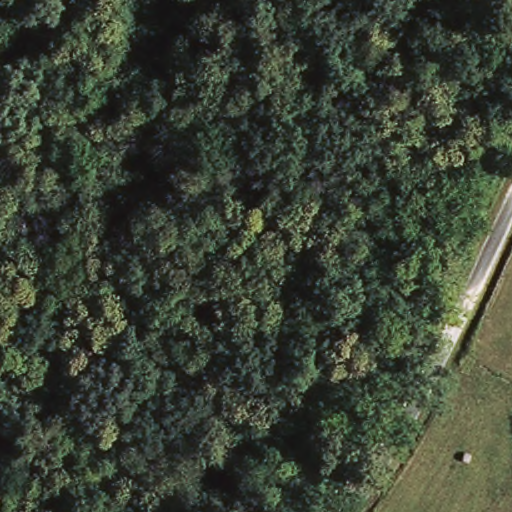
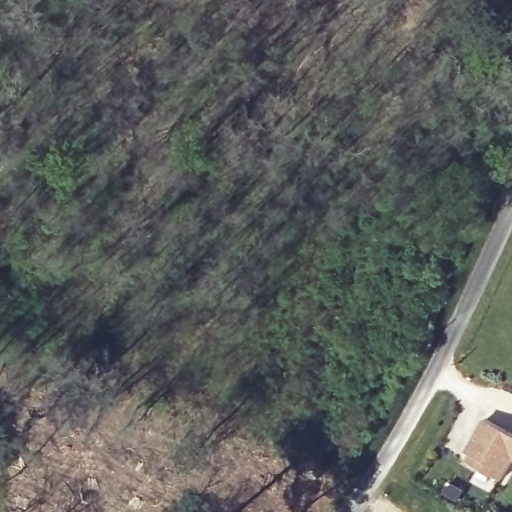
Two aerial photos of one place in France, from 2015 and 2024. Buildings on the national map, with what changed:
new [(512,431),(512,465),(505,479),(465,458),(486,418),(512,431)]

